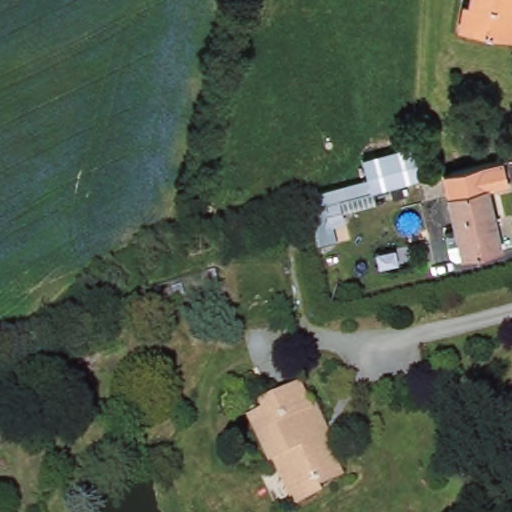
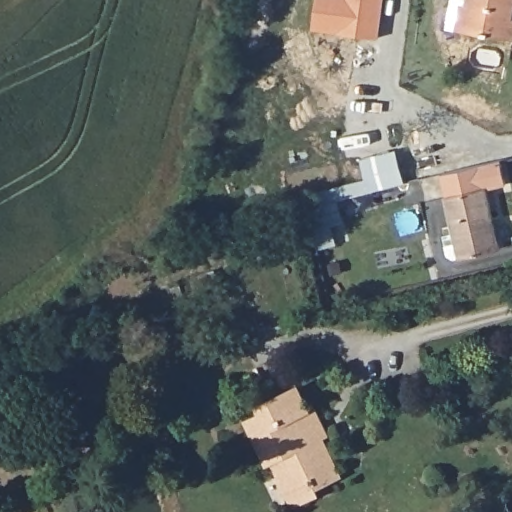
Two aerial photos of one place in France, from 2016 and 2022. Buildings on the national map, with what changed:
new [(314,28),(318,0),(383,0),(378,38),(314,28)]
unchanged [(466,36),(471,15),(459,13),(461,0),(512,0),(512,24),(512,45),(466,36)]
unchanged [(414,143),(427,205),(376,217),(359,159),(414,143)]
unchanged [(461,254),(455,256),(449,252),(444,233),(455,230),(442,174),(501,161),(506,183),(486,188),(499,248),(461,256),(461,254)]
unchanged [(282,235),(313,227),(309,208),(338,200),(345,231),(333,235),(335,244),(339,244),(342,255),(320,261),(316,243),(285,250),(282,235)]
unchanged [(269,412),(265,403),(299,387),(309,406),(314,404),(322,423),(314,427),(318,436),(320,434),(339,475),(314,487),(318,493),(297,503),(284,476),(289,473),(280,457),(269,462),(249,422),(269,412)]

